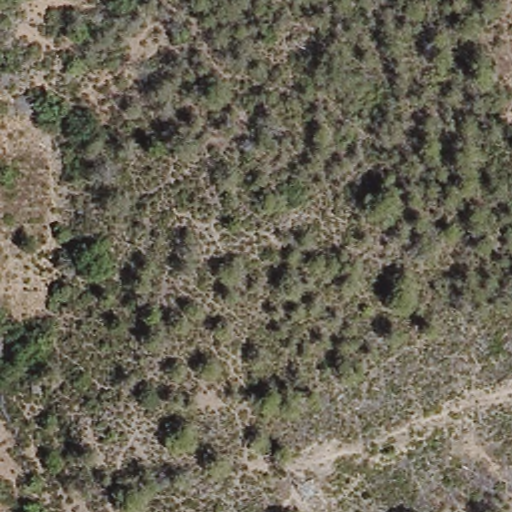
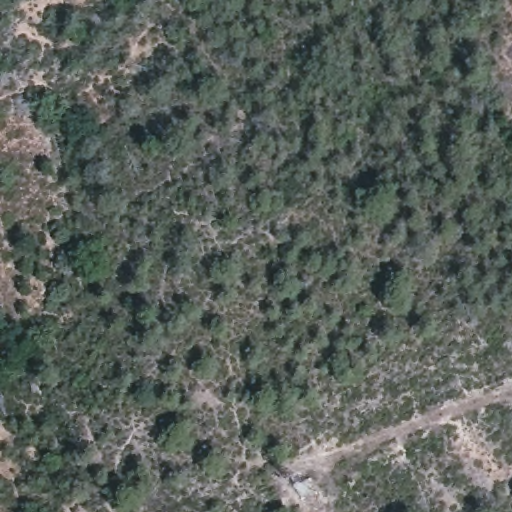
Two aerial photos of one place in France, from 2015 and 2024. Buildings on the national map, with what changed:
[]

